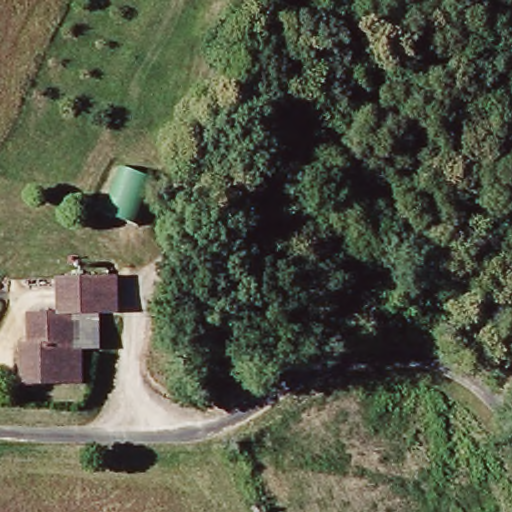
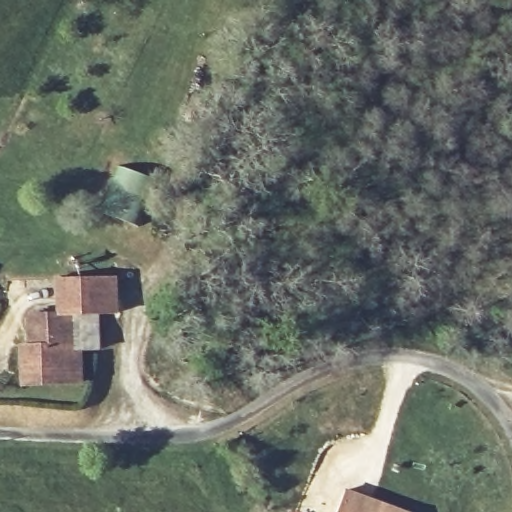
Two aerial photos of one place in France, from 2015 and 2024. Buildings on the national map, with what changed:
unchanged [(119,163),(157,181),(138,227),(102,211),(119,163)]
unchanged [(29,377),(31,337),(36,337),(36,307),(62,307),(62,271),(119,272),(119,310),(99,309),(98,339),(84,338),(82,380),(29,377)]
new [(343,490),(366,499),(372,501),(399,512),(336,512),(343,490)]

